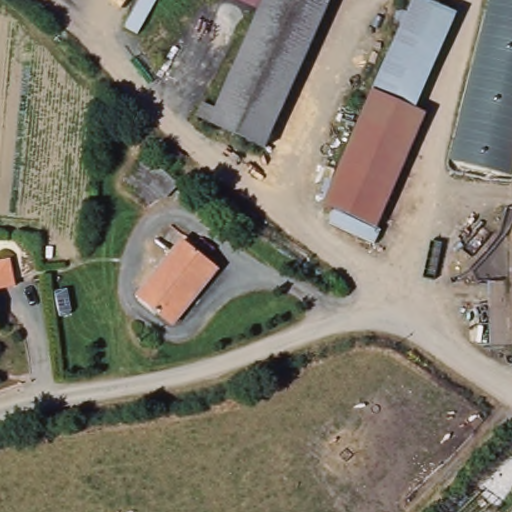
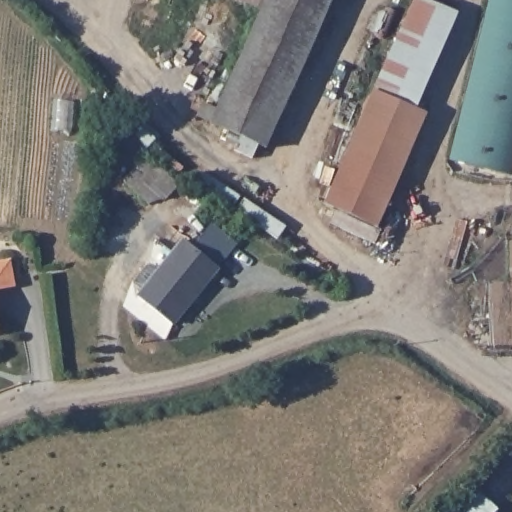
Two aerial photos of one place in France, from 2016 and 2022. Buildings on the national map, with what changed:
unchanged [(266,148),(211,124),(265,0),(332,0),(266,148)]
unchanged [(261,11),(235,0),(266,0),(261,11)]
unchanged [(414,0),(425,0),(458,13),(416,111),(372,92),(414,0)]
unchanged [(493,36),(462,165),(451,161),(490,0),(512,0),(512,22),(497,19),(493,36)]
unchanged [(497,19),(512,23),(512,178),(511,178),(491,173),(462,165),(493,36),(497,19)]
unchanged [(416,111),(426,115),(376,228),(367,224),(344,214),(323,204),(372,92),(416,111)]
unchanged [(179,186),(165,200),(150,205),(124,181),(147,157),(179,186)]
unchanged [(184,240),(218,268),(172,325),(138,297),(184,240)]
unchanged [(483,284),(506,284),(506,242),(512,242),(512,344),(485,345),(483,284)]
unchanged [(11,260),(15,286),(0,288),(0,261),(11,260)]

